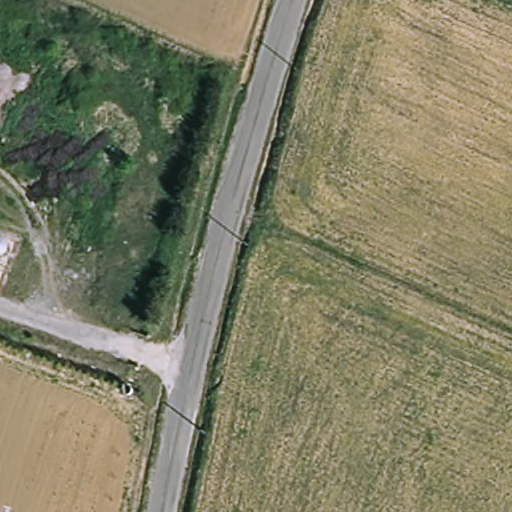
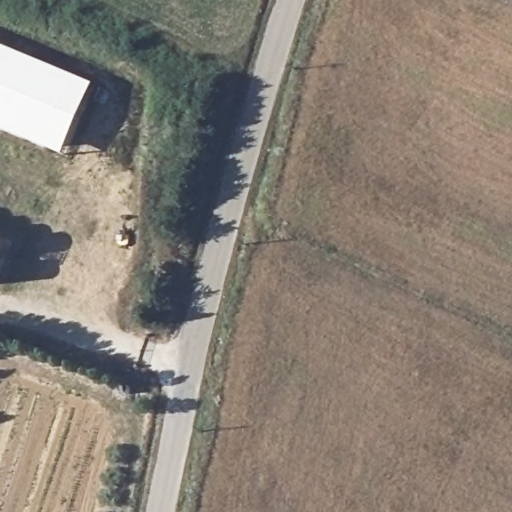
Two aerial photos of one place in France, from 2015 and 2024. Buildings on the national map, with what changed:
new [(0,46),(96,85),(65,156),(0,129),(0,46)]
unchanged [(0,271),(0,239),(12,244),(0,271)]

